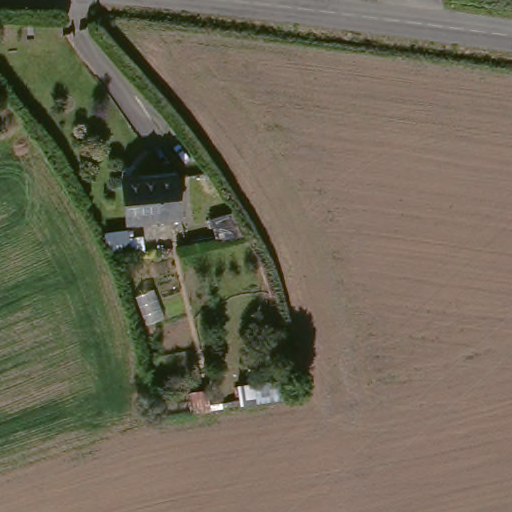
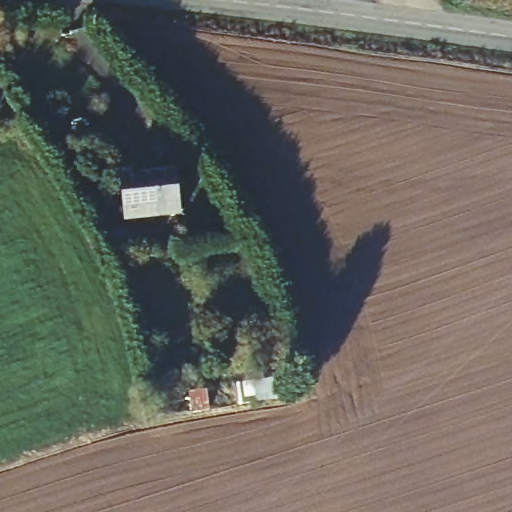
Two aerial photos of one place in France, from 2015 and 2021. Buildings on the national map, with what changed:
unchanged [(131,222),(125,182),(178,177),(183,216),(131,222)]
unchanged [(235,410),(231,395),(285,387),(288,402),(235,410)]

